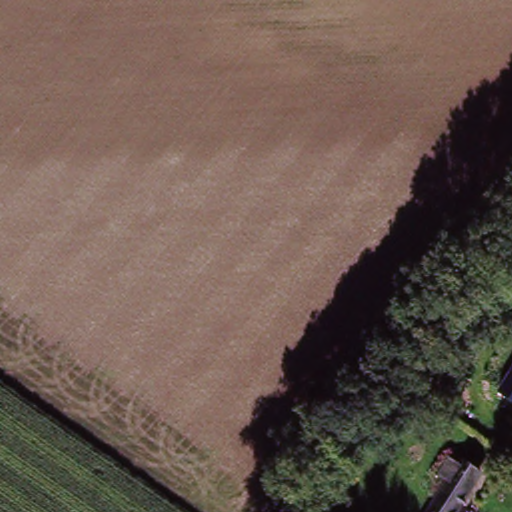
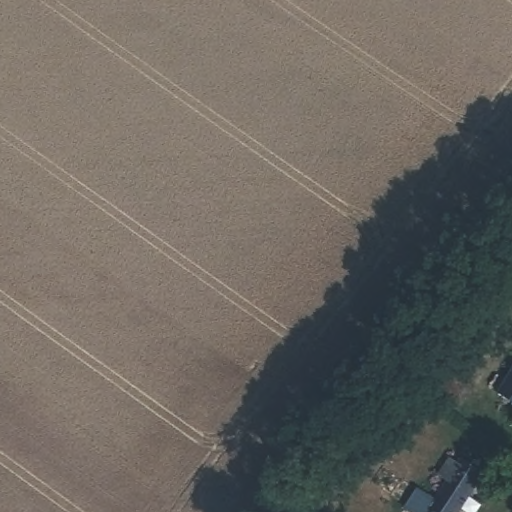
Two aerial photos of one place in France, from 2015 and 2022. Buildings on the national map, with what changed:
unchanged [(494,395),(499,387),(496,385),(512,360),(512,403),(510,406),(494,395)]
unchanged [(421,512),(451,465),(474,480),(453,512),(421,512)]

